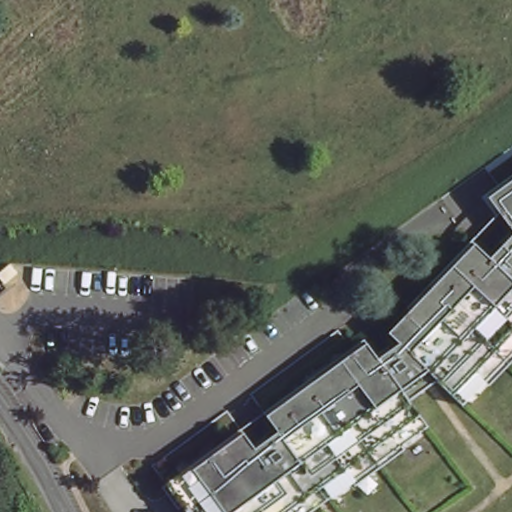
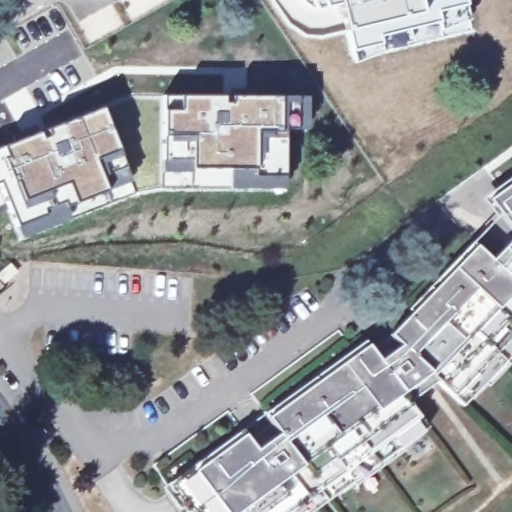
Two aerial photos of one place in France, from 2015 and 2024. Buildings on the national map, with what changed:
new [(354,61),(339,3),(316,9),(313,0),(466,0),(473,30),(354,61)]
new [(282,177),(281,185),(229,189),(191,187),(161,187),(160,96),(280,95),(307,95),(307,129),(284,128),(284,176),(284,177),(282,177)]
new [(20,239),(15,226),(0,190),(0,146),(43,129),(101,107),(118,150),(130,182),(107,191),(65,207),(70,217),(20,239)]
unchanged [(489,189),(512,172),(512,222),(494,197),(489,189)]
unchanged [(497,256),(490,249),(512,227),(512,271),(497,256)]
unchanged [(475,235),(490,249),(497,256),(512,271),(512,344),(461,396),(437,370),(400,335),(388,323),(475,235)]
unchanged [(243,422),(251,433),(254,438),(277,422),(276,420),(265,406),(306,377),(367,333),(378,349),(389,363),(408,391),(427,416),(293,512),(187,512),(191,510),(169,478),(167,476),(243,422)]
unchanged [(378,349),(400,335),(437,370),(408,391),(389,363),(378,349)]

